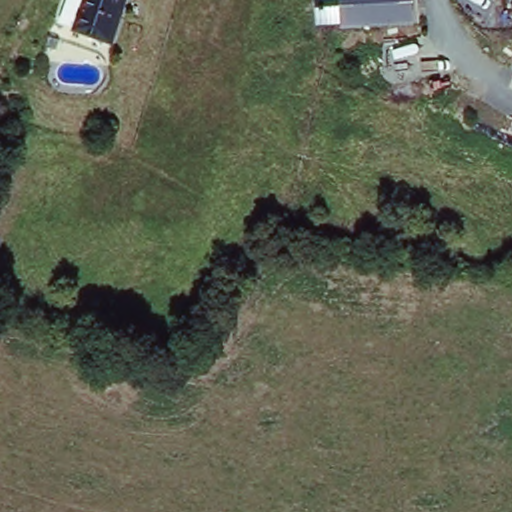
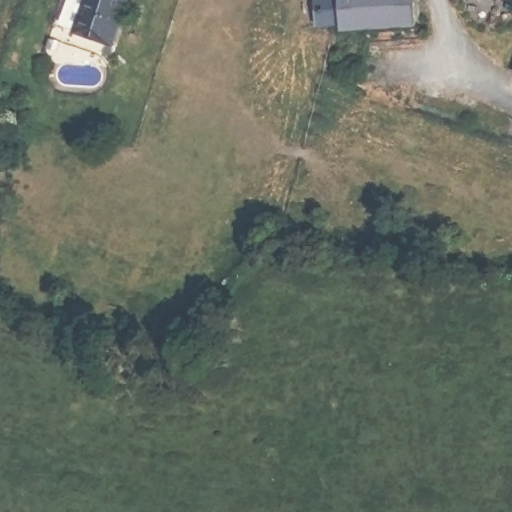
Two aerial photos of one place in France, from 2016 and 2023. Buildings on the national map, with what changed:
unchanged [(76,26),(84,0),(127,0),(114,39),(76,26)]
unchanged [(416,0),(418,25),(342,31),(339,0),(416,0)]

